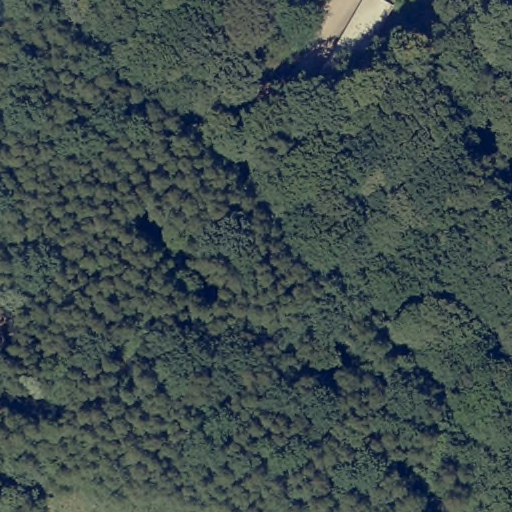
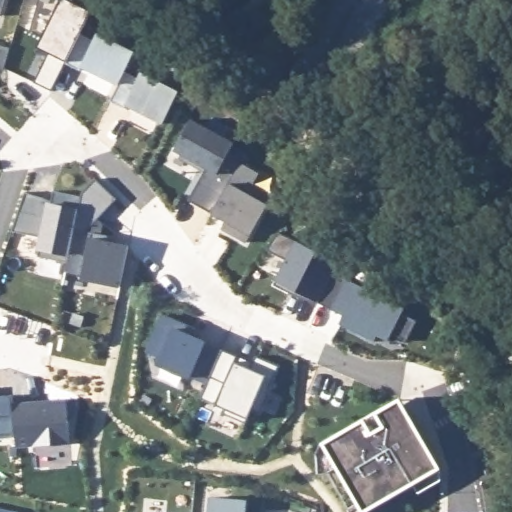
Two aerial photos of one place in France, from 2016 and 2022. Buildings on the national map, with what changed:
new [(0,6),(0,0),(2,0),(0,6)]
new [(49,47),(38,42),(43,32),(31,26),(39,0),(84,0),(92,6),(72,47),(65,61),(52,86),(34,78),(47,52),(49,47)]
unchanged [(360,0),(383,0),(388,4),(362,48),(339,34),(360,0)]
new [(8,47),(1,69),(0,69),(0,45),(8,47)]
new [(123,71),(137,77),(140,71),(177,90),(162,122),(125,104),(123,108),(109,100),(123,71)]
new [(232,144),(231,147),(244,154),(239,164),(211,215),(187,201),(201,175),(176,161),(180,155),(173,151),(190,120),(232,144)]
new [(239,164),(257,174),(251,185),(271,196),(245,243),(221,230),(225,222),(211,215),(239,164)]
new [(63,277),(65,268),(79,196),(80,192),(94,179),(116,199),(85,231),(114,236),(113,242),(128,245),(120,286),(97,284),(80,282),(81,279),(63,277)]
new [(43,198),(50,200),(52,190),(79,196),(65,268),(35,261),(38,242),(8,236),(22,194),(43,198)]
new [(404,310),(419,317),(409,338),(394,330),(390,338),(379,332),(377,338),(343,322),(347,313),(319,300),(319,301),(291,289),(276,280),(288,256),(268,245),(280,227),(340,258),(335,268),(407,305),(404,310)]
new [(163,316),(193,330),(190,337),(204,342),(203,345),(220,352),(207,383),(190,375),(188,378),(158,365),(161,358),(147,352),(163,316)]
new [(220,352),(221,350),(237,357),(252,364),(255,357),(279,367),(269,388),(271,390),(260,415),(251,410),(245,425),(222,415),(224,410),(200,400),(207,383),(220,352)]
new [(11,397),(12,406),(14,440),(0,441),(0,398),(11,397)]
new [(401,398),(431,450),(409,462),(379,411),(401,398)]
new [(47,403),(73,401),(74,417),(66,417),(68,445),(15,450),(14,440),(12,406),(30,405),(47,403)]
new [(329,475),(319,475),(318,454),(323,443),(379,411),(409,462),(431,450),(442,469),(368,512),(350,512),(349,509),(358,504),(338,469),(329,475)]
new [(247,502),(246,512),(210,512),(211,499),(247,502)]
new [(5,512),(0,512),(0,511),(5,512)]

